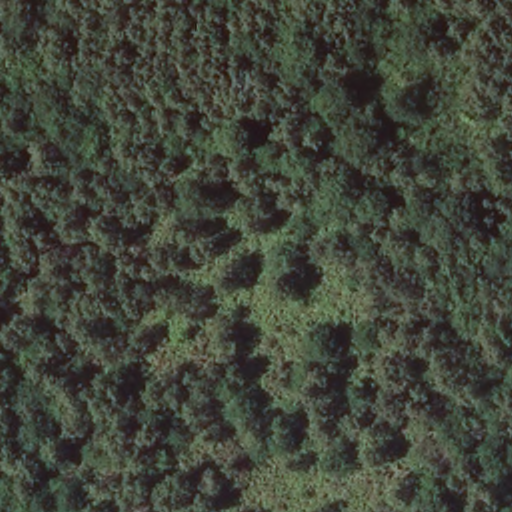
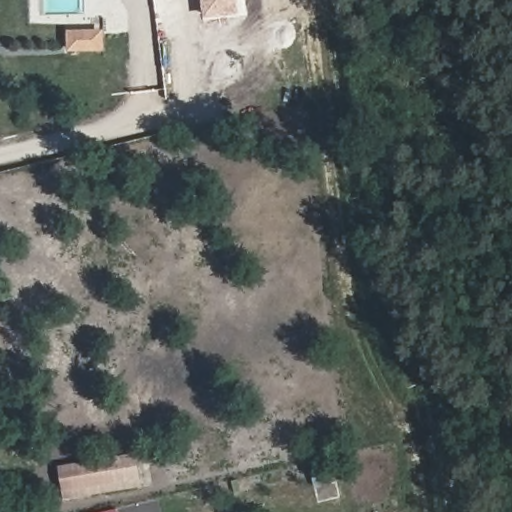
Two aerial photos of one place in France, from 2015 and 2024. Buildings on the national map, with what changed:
new [(201,0),(237,0),(239,15),(204,19),(201,0)]
new [(104,29),(105,51),(67,51),(69,30),(104,29)]
new [(134,454),(140,484),(65,498),(60,466),(134,454)]

